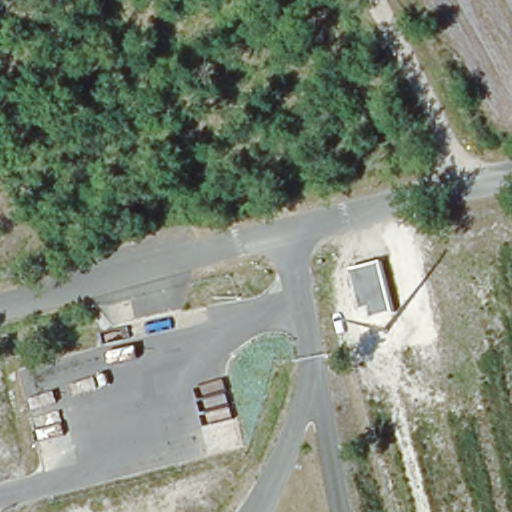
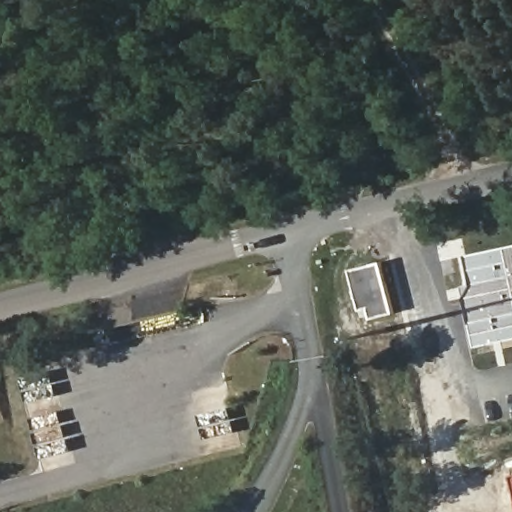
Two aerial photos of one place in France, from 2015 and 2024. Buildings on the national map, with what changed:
new [(473,284),(467,255),(512,245),(512,340),(476,347),(463,287),(473,284)]
unchanged [(394,314),(372,319),(369,306),(360,309),(350,269),(381,261),(394,314)]

